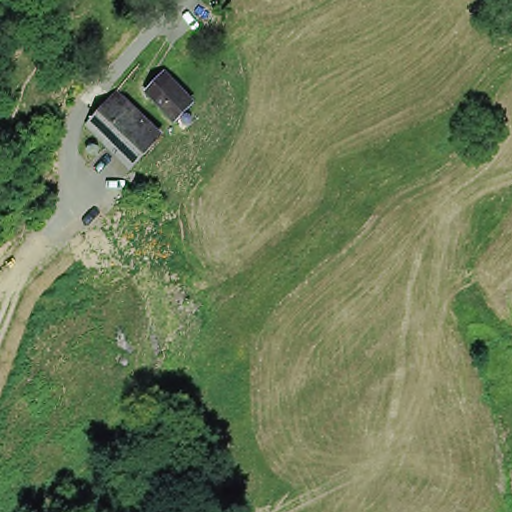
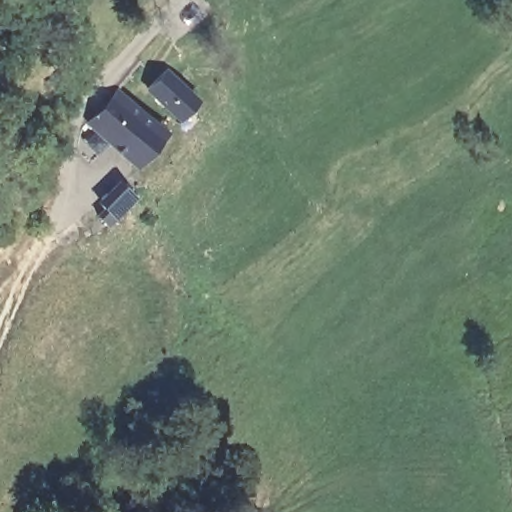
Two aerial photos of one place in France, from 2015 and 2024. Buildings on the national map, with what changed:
unchanged [(150,92),(166,72),(198,99),(181,119),(150,92)]
unchanged [(166,138),(139,167),(89,127),(114,96),(166,138)]

